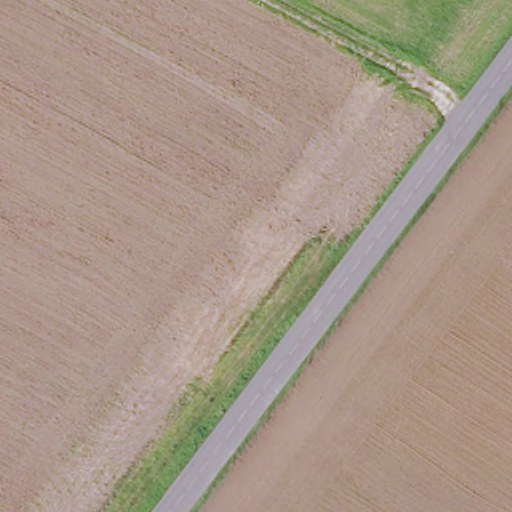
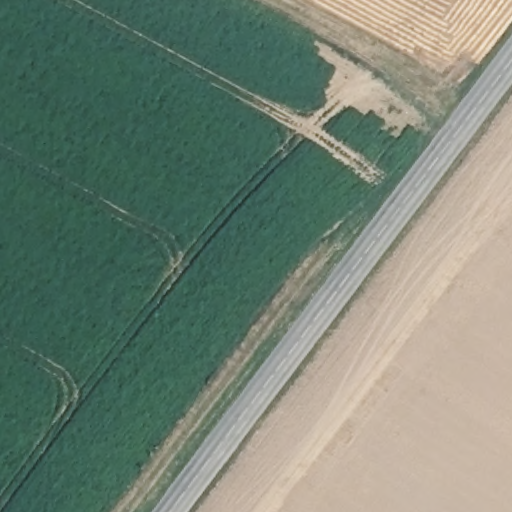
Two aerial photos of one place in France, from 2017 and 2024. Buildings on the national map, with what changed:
[]

